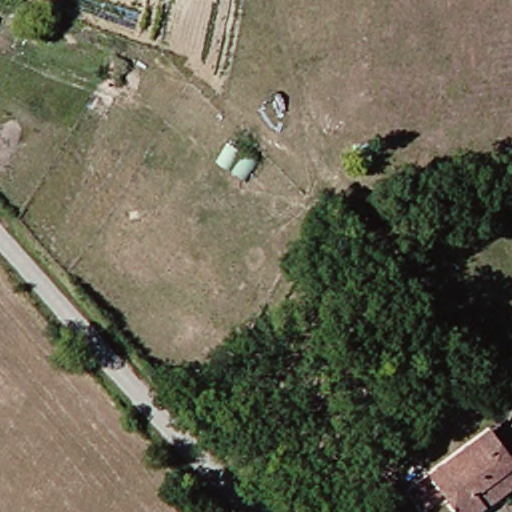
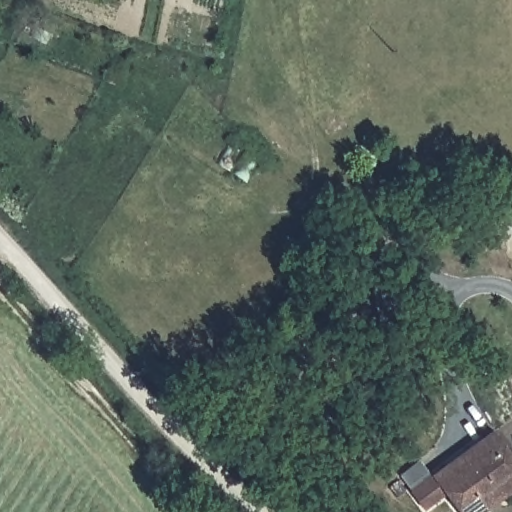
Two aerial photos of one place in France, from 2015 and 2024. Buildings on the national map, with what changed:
unchanged [(499,512),(466,512),(456,497),(434,511),(421,492),(507,436),(512,444),(512,503),(499,512)]

